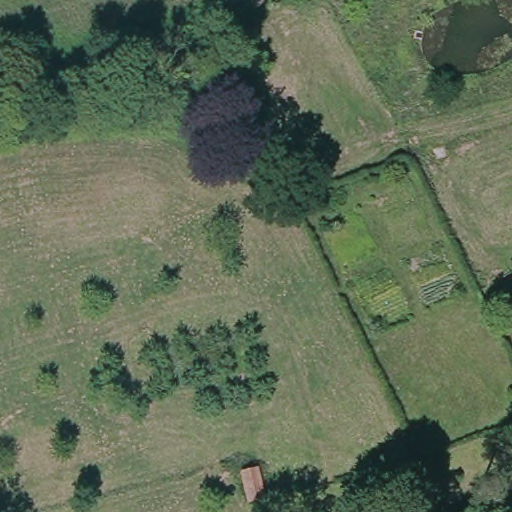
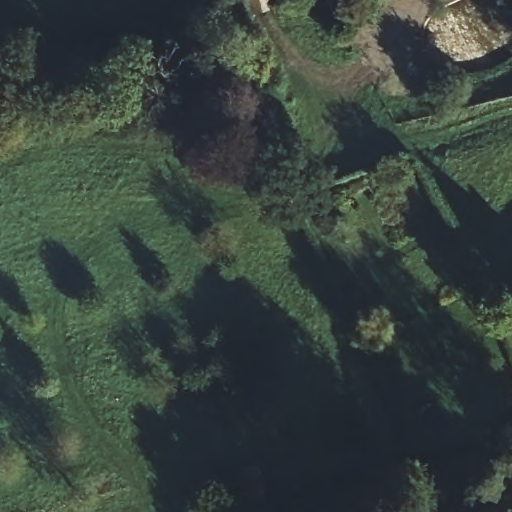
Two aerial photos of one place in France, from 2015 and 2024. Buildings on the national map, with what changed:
unchanged [(253,466),(263,494),(251,498),(241,470),(253,466)]

